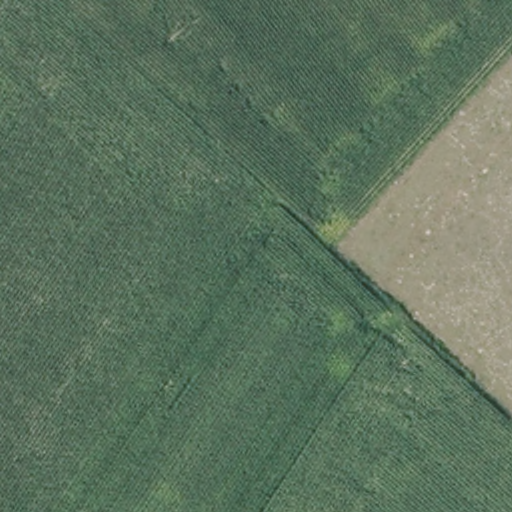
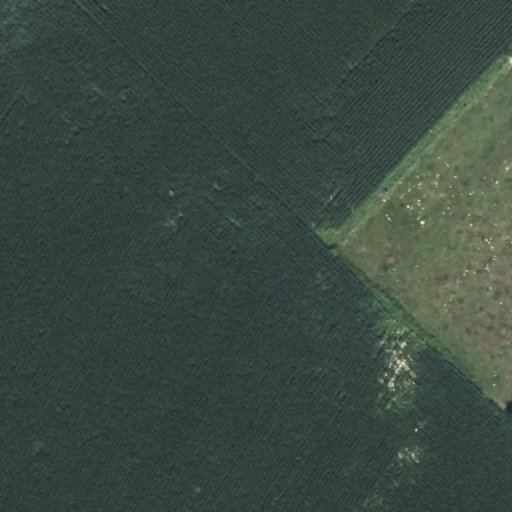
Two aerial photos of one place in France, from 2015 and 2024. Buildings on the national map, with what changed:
[]

